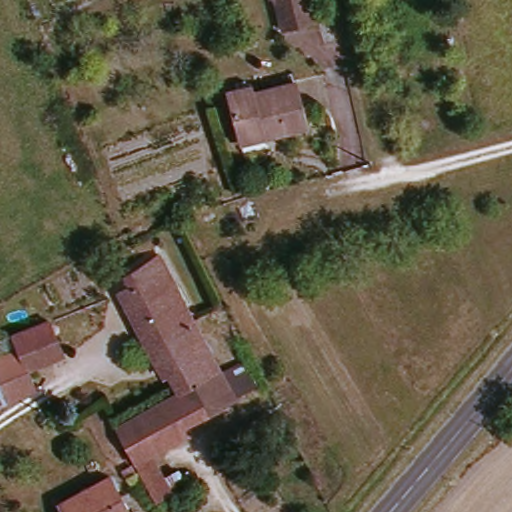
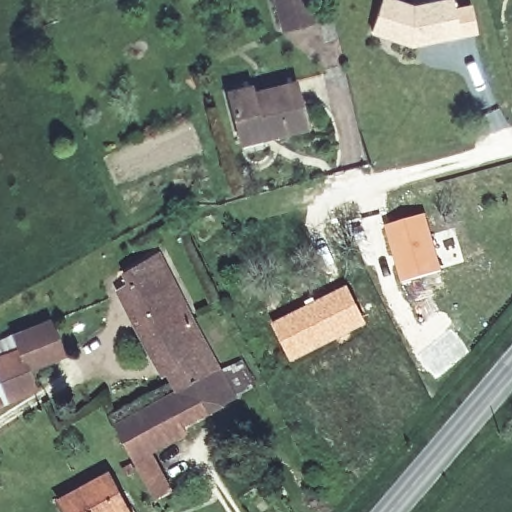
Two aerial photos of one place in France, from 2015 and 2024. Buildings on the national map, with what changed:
unchanged [(272,0),(307,0),(314,21),(282,31),(272,0)]
new [(392,0),(416,8),(451,0),(455,0),(462,34),(414,44),(374,33),(385,0),(392,0)]
unchanged [(242,136),(230,94),(252,88),(254,95),(295,83),(307,126),(270,137),(244,145),(242,136)]
new [(425,213),(442,272),(401,283),(383,225),(425,213)]
unchanged [(114,289),(128,282),(122,272),(151,257),(176,303),(134,324),(114,289)]
new [(346,284),(367,325),(291,364),(270,323),(346,284)]
unchanged [(146,349),(134,324),(176,303),(188,328),(146,349)]
unchanged [(17,340),(52,326),(65,353),(36,364),(29,368),(23,354),(17,340)]
unchanged [(173,398),(146,349),(188,328),(211,374),(173,398)]
unchanged [(45,387),(12,399),(0,369),(0,364),(23,354),(29,368),(36,364),(45,387)]
unchanged [(218,371),(240,359),(254,386),(232,399),(179,430),(185,439),(151,457),(172,494),(155,504),(114,433),(173,398),(211,374),(218,371)]
unchanged [(12,399),(0,404),(0,369),(12,399)]
unchanged [(63,495),(94,480),(106,474),(125,512),(71,512),(63,495)]

